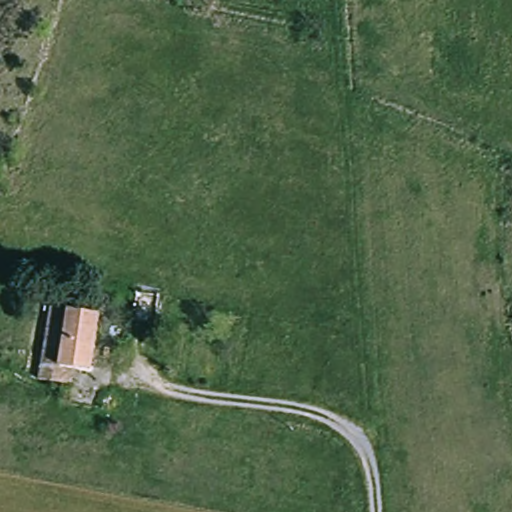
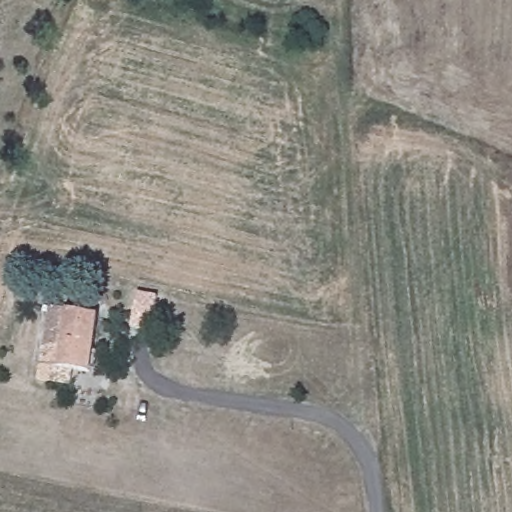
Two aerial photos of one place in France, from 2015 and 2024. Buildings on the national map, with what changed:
unchanged [(53,306),(100,313),(91,370),(72,367),(69,385),(42,380),(53,306)]

